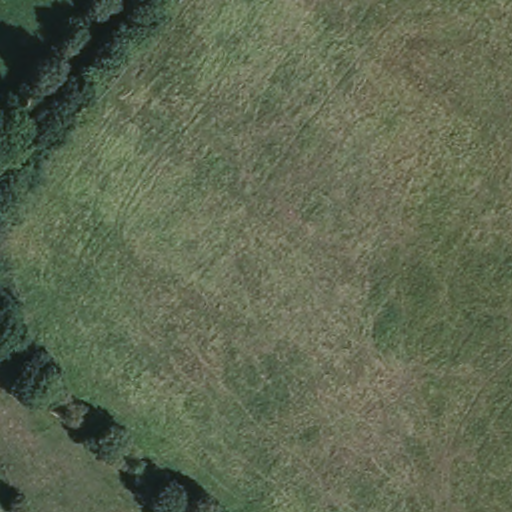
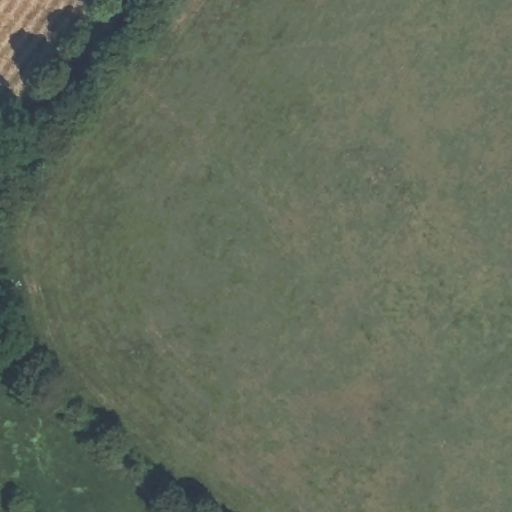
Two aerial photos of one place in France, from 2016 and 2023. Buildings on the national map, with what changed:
[]

